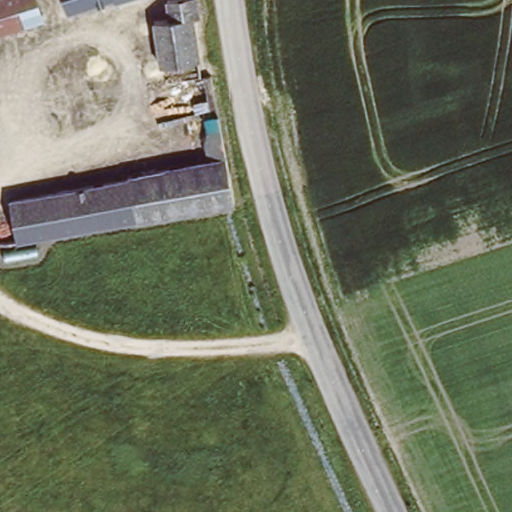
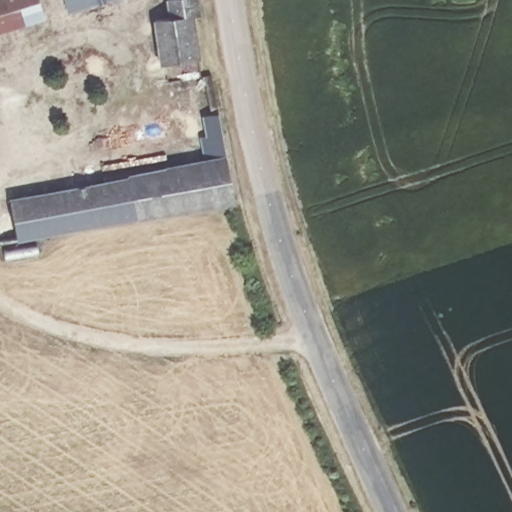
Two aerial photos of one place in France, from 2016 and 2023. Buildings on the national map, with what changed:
unchanged [(46,17),(0,31),(0,0),(40,0),(46,17)]
unchanged [(73,9),(70,0),(104,0),(73,9)]
unchanged [(200,76),(175,80),(160,82),(152,20),(170,18),(169,0),(199,0),(201,15),(193,16),(200,76)]
unchanged [(203,111),(188,114),(182,81),(207,76),(217,74),(223,107),(203,111)]
unchanged [(221,199),(143,214),(18,239),(10,198),(205,154),(201,137),(208,136),(203,111),(223,107),(240,195),(221,199)]

